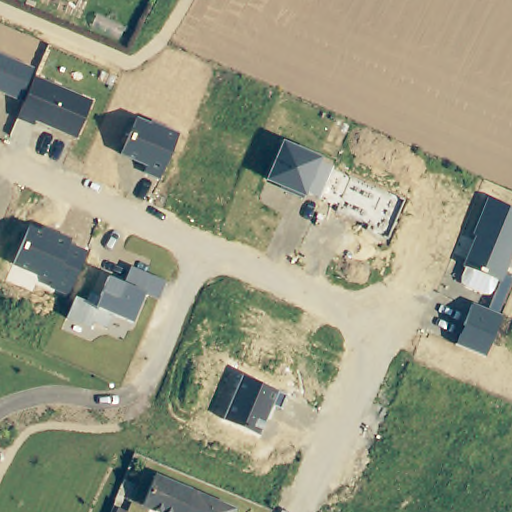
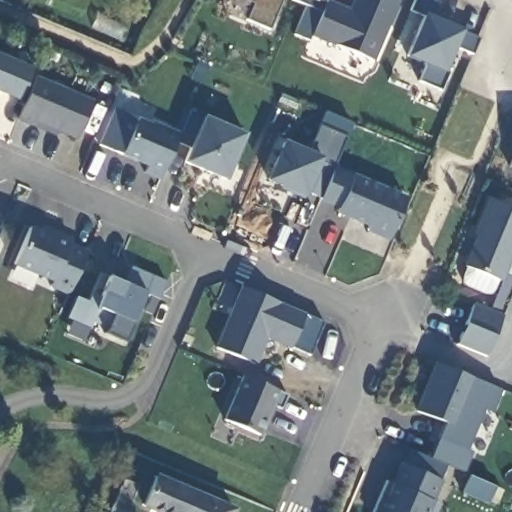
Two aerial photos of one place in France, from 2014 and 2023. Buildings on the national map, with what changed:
new [(246,19),(252,3),(247,0),(279,0),(269,27),(246,19)]
new [(309,35),(318,10),(296,0),(325,0),(349,10),(353,0),(400,0),(375,61),(309,35)]
new [(463,30),(480,36),(471,55),(455,48),(446,72),(440,89),(419,80),(426,63),(406,55),(422,16),(410,10),(414,0),(440,0),(434,16),(463,30)]
unchanged [(20,101),(0,93),(0,54),(35,69),(20,101)]
unchanged [(36,76),(92,101),(76,139),(35,121),(33,126),(17,119),(36,76)]
new [(95,146),(112,106),(138,118),(120,156),(95,146)]
new [(224,180),(183,161),(188,149),(176,142),(180,134),(192,111),(202,116),(245,133),(224,180)]
unchanged [(138,118),(150,123),(151,121),(180,134),(160,180),(143,173),(147,167),(120,156),(138,118)]
unchanged [(304,198),(266,181),(283,142),(321,158),(320,162),(331,167),(319,199),(304,198)]
new [(508,166),(512,156),(512,168),(508,166)]
unchanged [(331,167),(404,200),(387,239),(366,230),(369,224),(337,210),(339,206),(319,199),(331,167)]
unchanged [(474,303),(490,310),(502,282),(498,280),(492,294),(487,296),(477,293),(465,287),(462,283),(462,276),(467,268),(463,266),(476,236),(472,235),(488,199),(512,208),(512,258),(505,275),(512,278),(512,286),(500,315),(503,317),(486,357),(457,345),(474,303)]
unchanged [(29,227),(41,231),(42,226),(71,239),(69,244),(87,251),(67,296),(49,288),(53,283),(13,266),(29,227)]
unchanged [(76,297),(87,302),(90,294),(101,297),(109,277),(125,283),(131,267),(165,282),(158,300),(146,295),(132,323),(113,315),(106,329),(92,322),(87,330),(66,318),(76,297)]
new [(303,312),(324,321),(309,355),(289,348),(266,339),(254,364),(215,347),(239,286),(303,312)]
new [(434,363),(501,389),(493,412),(483,408),(466,450),(472,453),(465,472),(430,458),(444,423),(414,410),(434,363)]
unchanged [(243,376),(285,395),(280,409),(273,405),(259,436),(225,421),(243,376)]
new [(441,481),(432,502),(439,505),(437,512),(372,512),(383,482),(390,485),(400,464),(441,481)]
unchanged [(231,511),(231,512),(158,512),(141,505),(152,479),(179,490),(231,511)]

